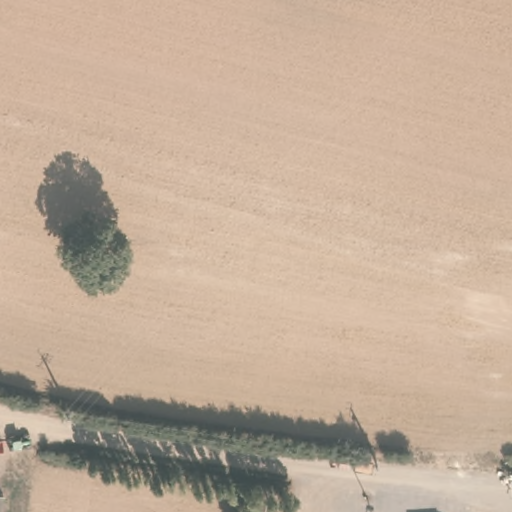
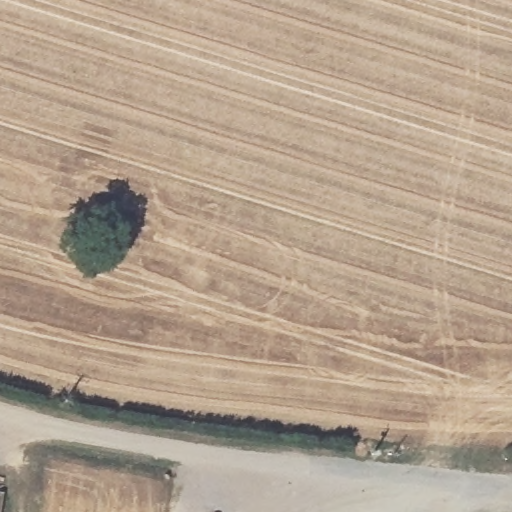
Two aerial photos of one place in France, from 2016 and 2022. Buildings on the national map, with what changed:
unchanged [(1,493),(0,505),(0,492),(1,493)]

